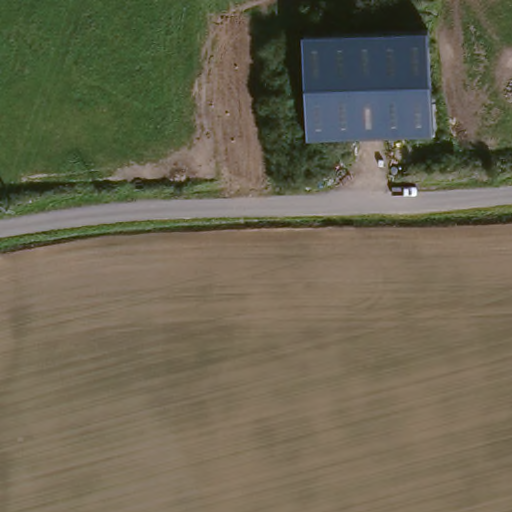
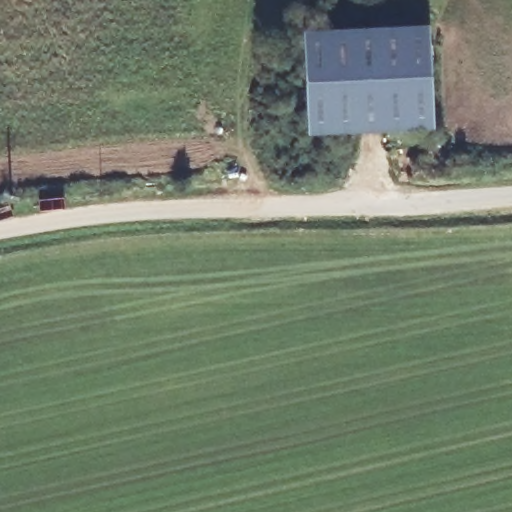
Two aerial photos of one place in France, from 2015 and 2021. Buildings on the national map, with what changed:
unchanged [(303,37),(429,30),(434,131),(308,136),(303,37)]

